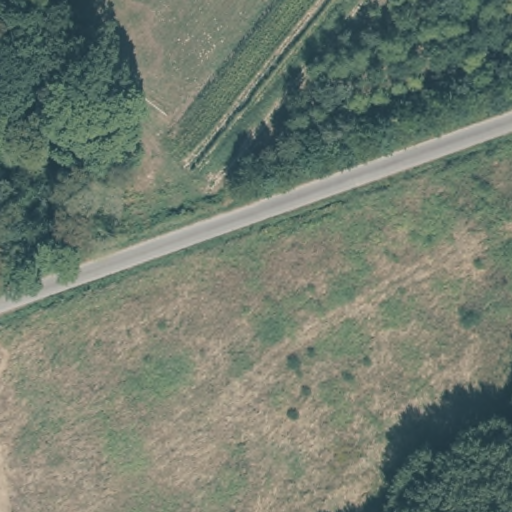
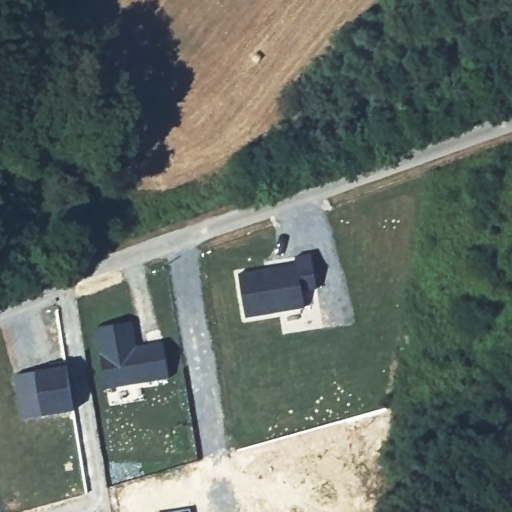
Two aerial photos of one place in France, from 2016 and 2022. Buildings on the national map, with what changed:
new [(296,264),(295,256),(310,254),(317,289),(301,291),(305,308),(245,318),(236,273),(296,264)]
new [(130,321),(135,347),(163,343),(170,379),(105,389),(95,328),(130,321)]
new [(14,376),(35,372),(65,367),(72,411),(42,416),(21,419),(14,376)]

